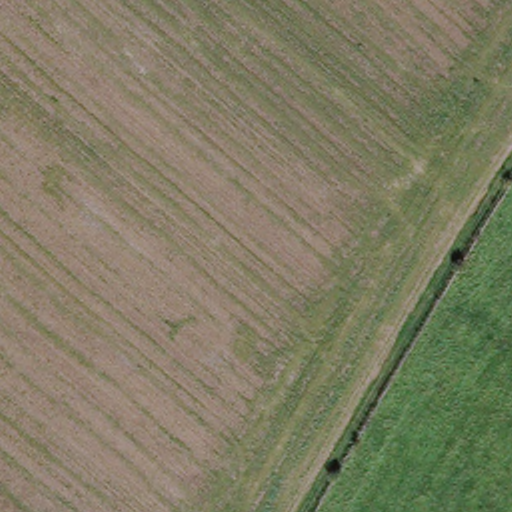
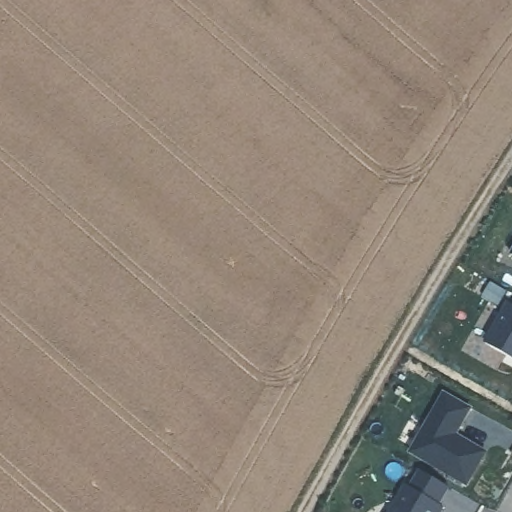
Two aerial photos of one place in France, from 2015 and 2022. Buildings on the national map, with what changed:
new [(512,298),(512,352),(487,338),(509,297),(512,298)]
new [(462,420),(457,421),(454,427),(487,446),(469,478),(412,446),(445,387),(472,402),(462,420)]
new [(437,512),(389,512),(407,481),(411,483),(421,466),(449,482),(439,499),(443,502),(437,512)]

